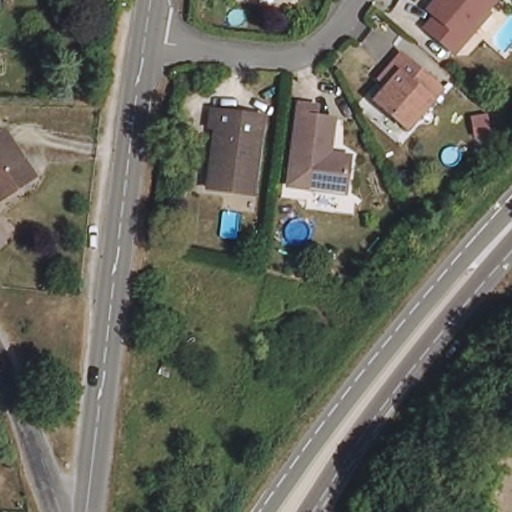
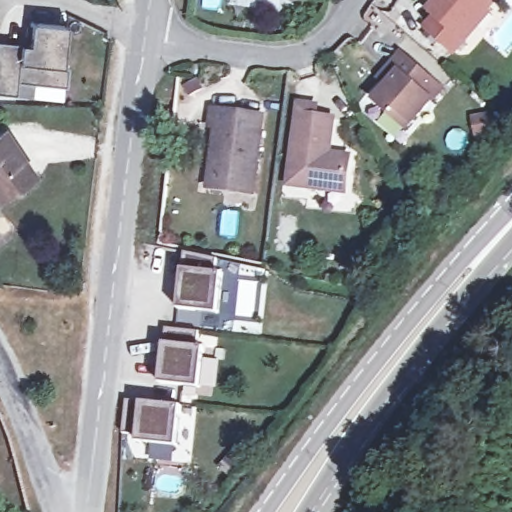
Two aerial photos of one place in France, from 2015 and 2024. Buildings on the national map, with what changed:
unchanged [(433,2),(435,0),(489,0),(464,30),(467,32),(456,45),(428,21),(439,8),(433,2)]
new [(16,92),(0,91),(0,40),(21,42),(29,43),(31,20),(68,24),(63,65),(68,65),(66,84),(31,80),(30,94),(16,92)]
unchanged [(440,86),(406,125),(374,97),(387,82),(379,76),(385,69),(399,51),(440,86)]
unchanged [(208,168),(216,115),(211,115),(213,97),(263,104),(253,181),(224,177),(208,175),(208,168)]
unchanged [(344,195),(289,187),(300,107),(316,109),(315,120),(333,122),(328,157),(349,160),(344,195)]
unchanged [(0,201),(0,136),(2,135),(32,180),(0,201)]
new [(181,267),(183,251),(216,258),(215,271),(222,271),(218,312),(177,307),(181,267)]
new [(206,332),(203,347),(198,385),(159,381),(164,342),(167,328),(206,332)]
new [(126,398),(181,405),(176,445),(136,440),(136,433),(123,432),(126,398)]

